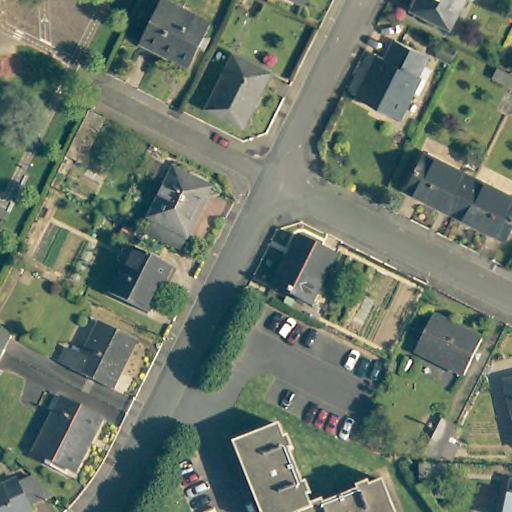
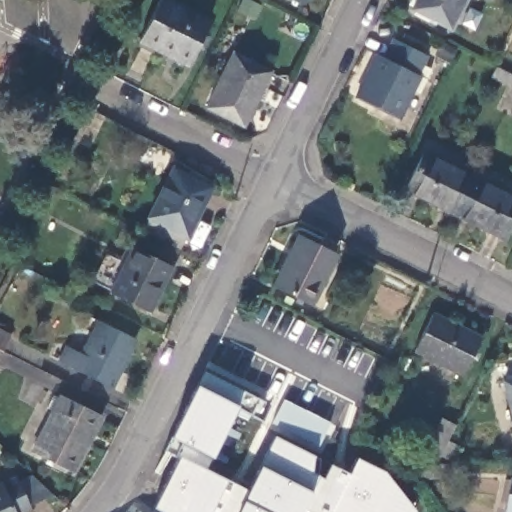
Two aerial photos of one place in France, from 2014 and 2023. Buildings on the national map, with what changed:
unchanged [(166,0),(215,25),(196,63),(166,48),(165,52),(145,42),(166,0)]
unchanged [(314,0),(313,2),(309,0),(314,0)]
unchanged [(471,0),(459,25),(422,6),(426,0),(471,0)]
unchanged [(383,57),(390,61),(399,41),(433,59),(423,77),(426,79),(405,122),(362,100),(383,57)]
unchanged [(244,51),(280,69),(253,122),(217,105),(244,51)]
unchanged [(502,61),(512,66),(512,79),(496,71),(502,61)]
unchanged [(110,110),(87,155),(71,147),(94,102),(110,110)]
unchanged [(411,182),(429,146),(478,171),(460,207),(411,182)]
unchanged [(159,225),(165,211),(164,210),(189,161),(226,181),(202,230),(200,229),(194,242),(159,225)]
unchanged [(512,188),(512,226),(509,232),(460,207),(478,171),(512,188)]
unchanged [(313,235),(350,252),(325,303),(289,285),(313,235)]
unchanged [(126,292),(150,245),(187,263),(164,311),(126,292)]
unchanged [(479,373),(430,349),(447,313),(496,337),(479,373)]
unchanged [(70,361),(77,346),(94,353),(110,320),(146,337),(121,387),(70,361)]
unchanged [(11,338),(3,354),(0,360),(0,333),(11,338)]
new [(261,421),(235,408),(217,444),(223,448),(210,472),(224,478),(206,512),(165,512),(154,507),(178,457),(165,450),(205,372),(268,404),(261,421)]
unchanged [(109,439),(101,436),(84,472),(49,454),(75,400),(117,421),(109,439)]
unchanged [(456,456),(445,450),(442,455),(428,447),(446,412),(460,419),(452,436),(463,441),(456,456)]
demolished [(309,512),(308,512),(270,512),(242,440),(288,422),(294,435),(297,433),(302,446),(298,447),(312,481),(315,480),(320,492),(317,493),(320,502),(332,497),(334,501),(367,487),(366,483),(378,479),(380,482),(393,477),(407,512),(309,512)]
new [(313,489),(302,511),(295,507),(293,512),(238,512),(262,467),(276,437),(319,458),(313,489)]
new [(412,508),(411,512),(329,512),(357,457),(383,470),(412,508)]
unchanged [(441,457),(453,457),(452,472),(422,472),(423,457),(441,457)]
unchanged [(440,489),(441,477),(454,479),(451,492),(440,489)]
unchanged [(36,480),(56,499),(34,510),(35,512),(0,512),(0,492),(21,482),(23,486),(36,480)]

